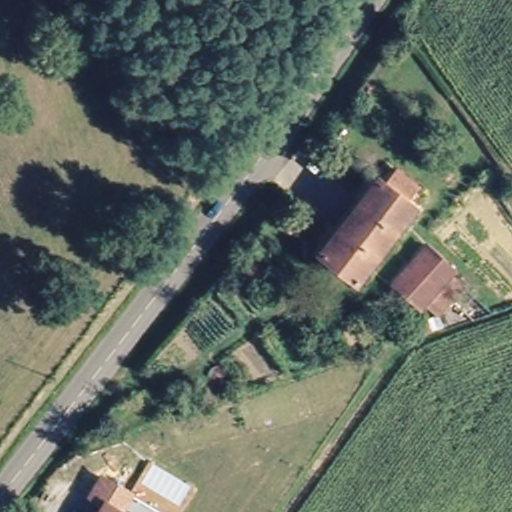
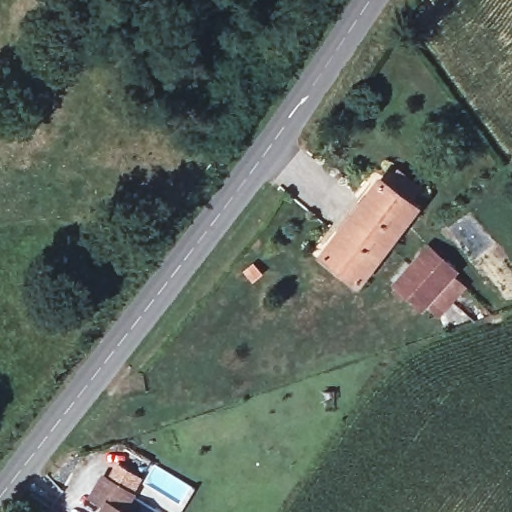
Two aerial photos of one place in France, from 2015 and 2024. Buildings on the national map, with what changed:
unchanged [(377,187),(383,192),(392,179),(416,194),(407,211),(377,252),(346,229),(377,187)]
unchanged [(346,229),(377,252),(351,287),(320,263),(346,229)]
unchanged [(393,289),(409,267),(424,249),(453,271),(438,290),(421,311),(393,289)]
unchanged [(427,311),(433,326),(415,334),(409,318),(427,311)]
unchanged [(130,487),(120,506),(131,512),(97,512),(104,500),(89,492),(100,472),(130,487)]

